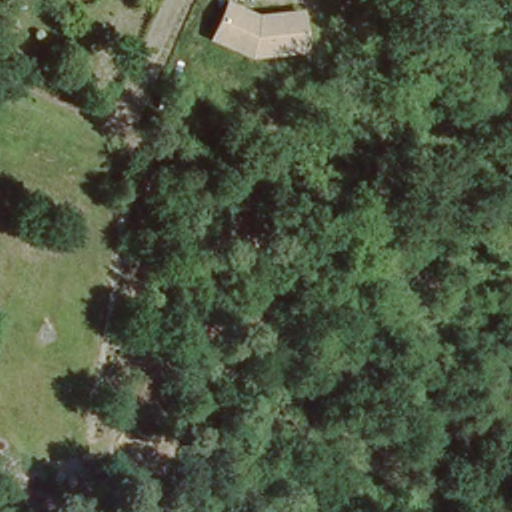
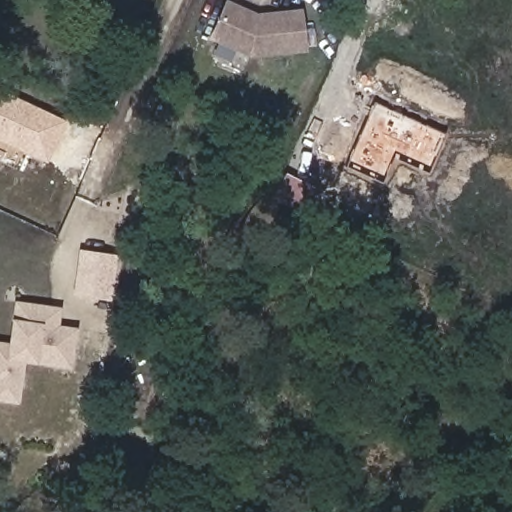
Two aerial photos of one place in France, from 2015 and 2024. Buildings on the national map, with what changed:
unchanged [(306,9),(309,53),(256,60),(210,39),(230,1),(257,14),(306,9)]
new [(46,158),(0,136),(0,91),(65,121),(46,158)]
new [(429,172),(394,157),(383,183),(345,167),(374,104),(445,135),(429,172)]
new [(80,250),(119,255),(112,302),(73,296),(80,250)]
new [(20,406),(0,402),(0,342),(9,343),(12,319),(18,319),(20,302),(63,307),(61,325),(79,328),(73,371),(26,363),(20,406)]

